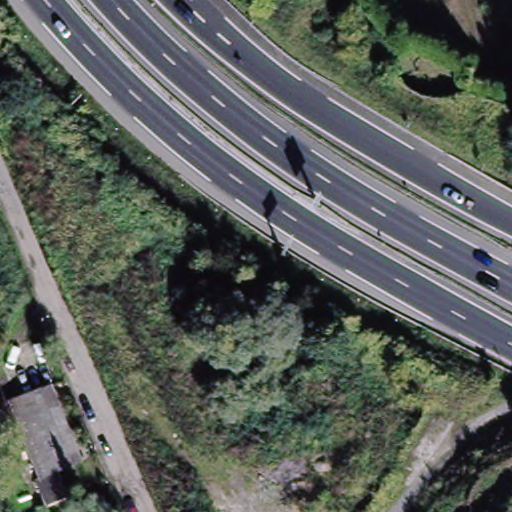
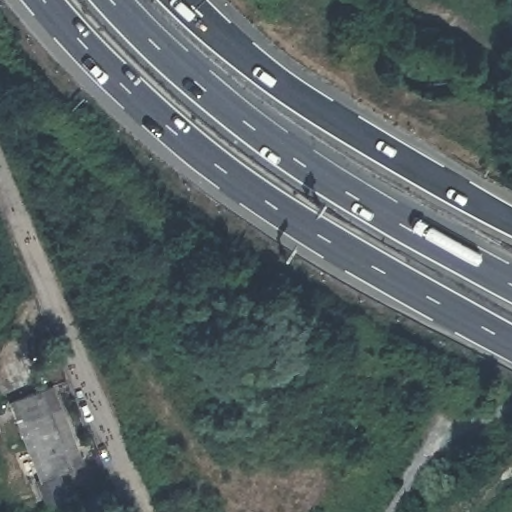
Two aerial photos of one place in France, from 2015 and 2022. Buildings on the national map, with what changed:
unchanged [(64,473),(31,400),(56,390),(81,449),(86,464),(78,467),(64,473)]
unchanged [(73,492),(56,499),(48,478),(54,476),(21,404),(31,400),(64,473),(73,492)]
unchanged [(80,508),(76,501),(101,490),(105,497),(112,512),(82,512),(80,508)]

